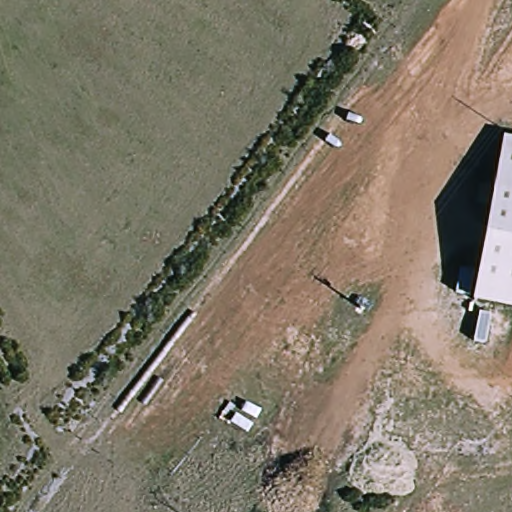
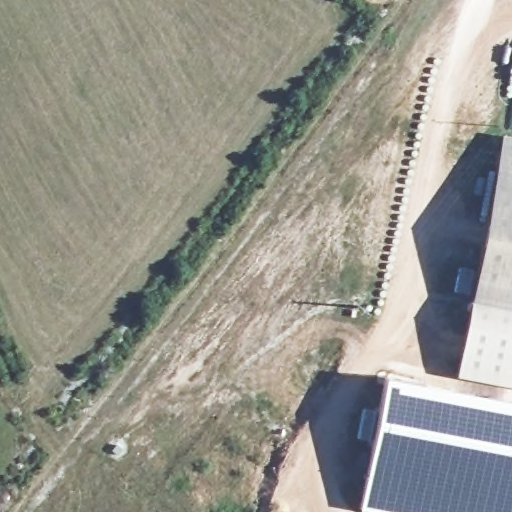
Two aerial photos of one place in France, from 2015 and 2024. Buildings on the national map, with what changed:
unchanged [(512,138),(512,311),(472,303),(496,177),(504,136),(512,138)]
new [(458,377),(472,303),(512,311),(512,388),(458,377)]
new [(375,512),(360,509),(385,376),(512,400),(512,512),(375,512)]

